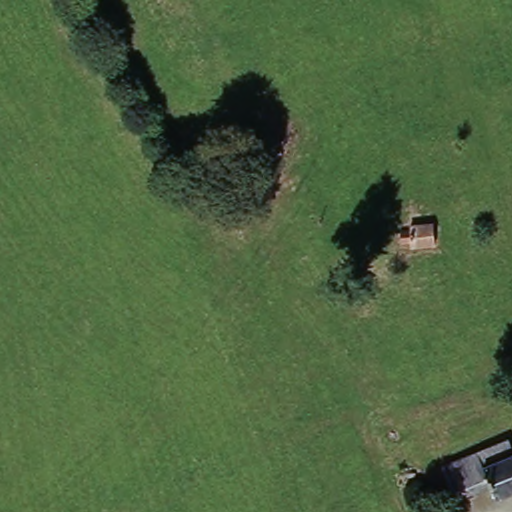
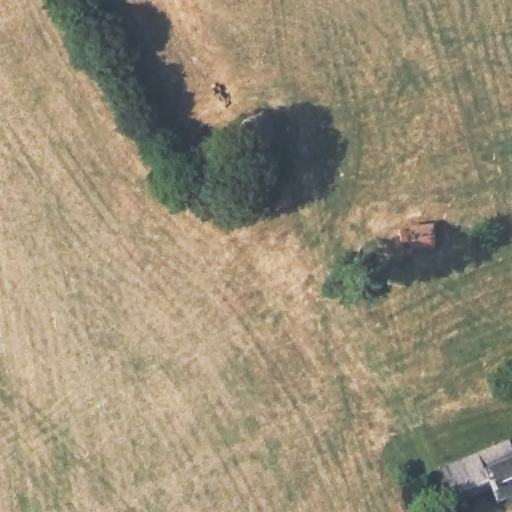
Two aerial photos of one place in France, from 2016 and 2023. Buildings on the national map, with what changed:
unchanged [(428,223),(432,242),(410,245),(408,226),(428,223)]
unchanged [(499,498),(493,487),(460,501),(446,467),(511,442),(512,444),(512,494),(499,498)]

